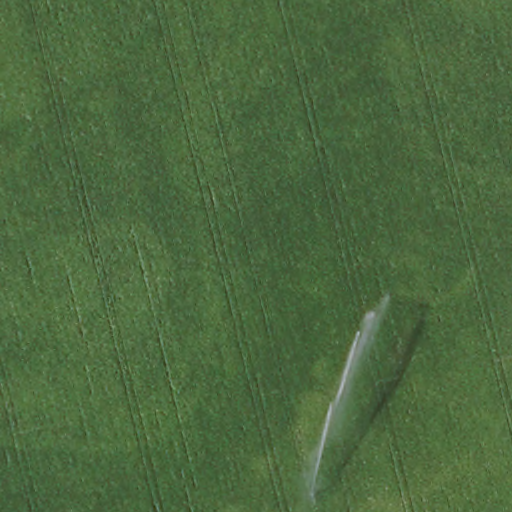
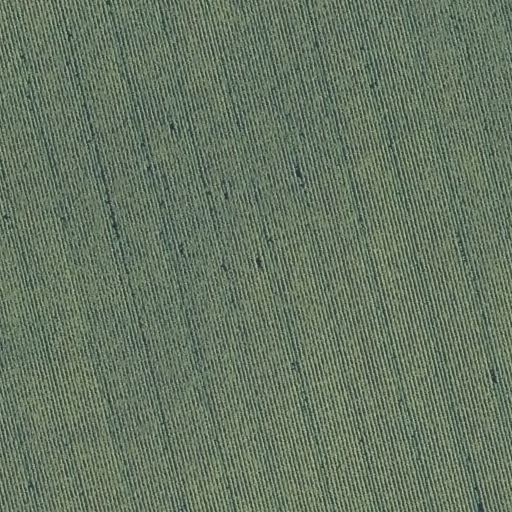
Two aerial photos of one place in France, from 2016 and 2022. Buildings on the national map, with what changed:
[]

